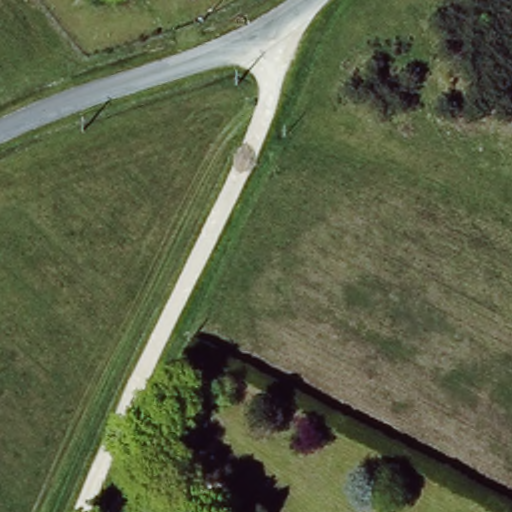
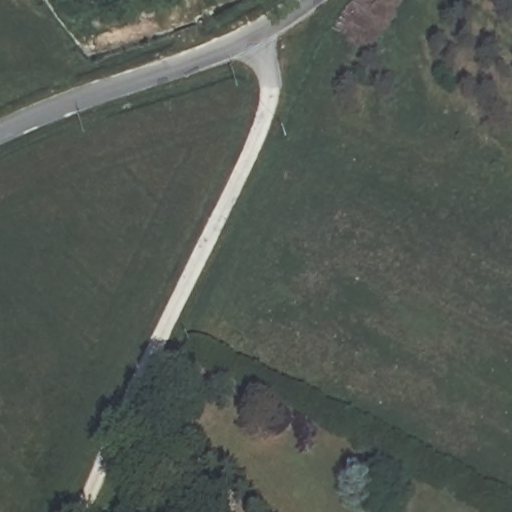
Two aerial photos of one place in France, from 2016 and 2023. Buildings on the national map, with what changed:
[]

